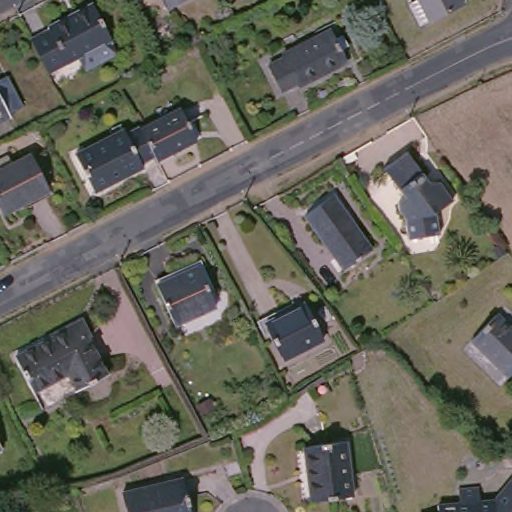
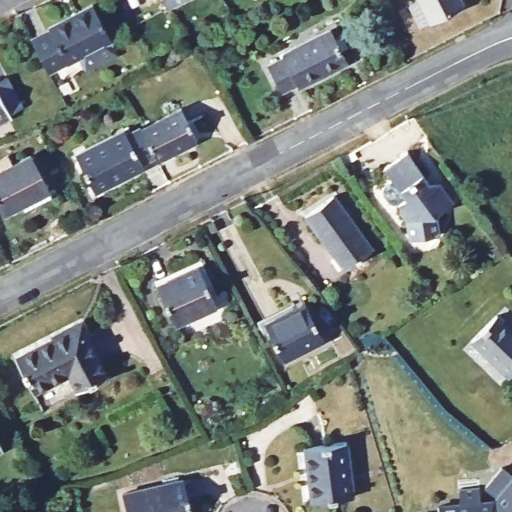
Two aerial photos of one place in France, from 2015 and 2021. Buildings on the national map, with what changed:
unchanged [(167,12),(162,0),(191,0),(167,12)]
unchanged [(463,7),(429,23),(418,0),(459,0),(463,7)]
unchanged [(35,43),(35,42),(54,33),(54,30),(98,8),(117,44),(53,77),(35,43)]
unchanged [(302,49),(330,34),(347,66),(318,82),(302,49)]
unchanged [(301,91),(299,89),(283,96),(270,69),(284,62),(285,58),(302,49),(318,82),(301,91)]
unchanged [(5,81),(21,113),(9,120),(10,122),(0,127),(0,84),(5,81)]
unchanged [(160,155),(147,128),(186,108),(202,140),(162,160),(160,155)]
unchanged [(160,155),(147,162),(148,167),(100,192),(81,154),(129,129),(132,133),(146,126),(147,128),(160,155)]
unchanged [(431,186),(438,181),(452,199),(435,211),(436,235),(405,237),(404,222),(396,212),(395,202),(403,197),(382,167),(406,150),(431,186)]
unchanged [(13,164),(30,154),(49,190),(5,213),(0,204),(0,170),(1,169),(0,166),(0,159),(8,155),(13,164)]
unchanged [(372,254),(346,274),(306,219),(333,200),(372,254)]
unchanged [(216,305),(175,325),(157,284),(198,266),(216,305)]
unchanged [(329,339),(289,359),(270,322),(310,302),(329,339)]
unchanged [(512,377),(509,380),(473,345),(497,318),(512,333),(512,377)]
unchanged [(81,327),(108,378),(89,389),(62,338),(81,327)]
unchanged [(89,389),(77,395),(69,379),(34,396),(16,360),(62,338),(89,389)]
unchanged [(353,496),(315,500),(310,469),(307,470),(305,446),(346,441),(353,496)]
unchanged [(0,450),(0,445),(2,448),(0,450)]
unchanged [(128,512),(124,497),(183,483),(189,512),(128,512)]
unchanged [(459,509),(457,494),(478,492),(479,507),(491,506),(493,507),(512,485),(512,512),(437,512),(437,511),(459,509)]

